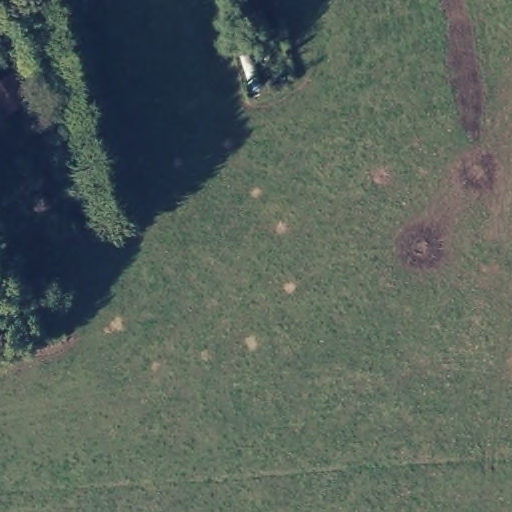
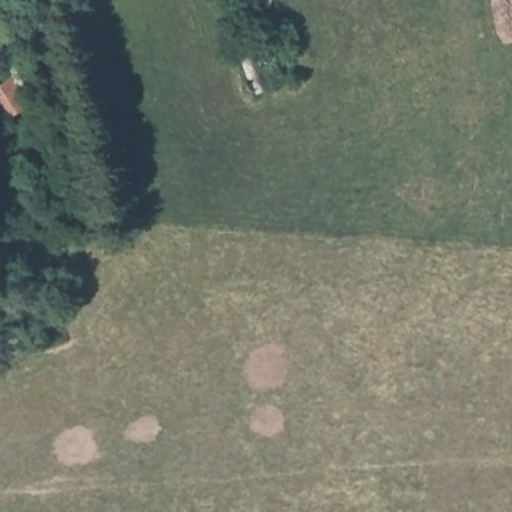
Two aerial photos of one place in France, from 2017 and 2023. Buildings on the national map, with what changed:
unchanged [(58,90),(46,52),(64,51),(75,87),(58,90)]
unchanged [(21,76),(35,97),(0,121),(0,89),(21,76)]

